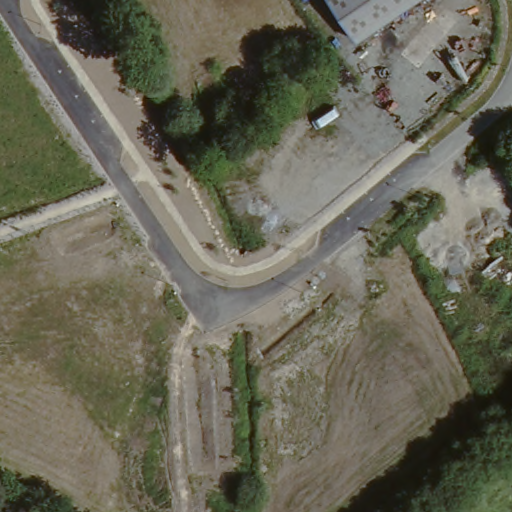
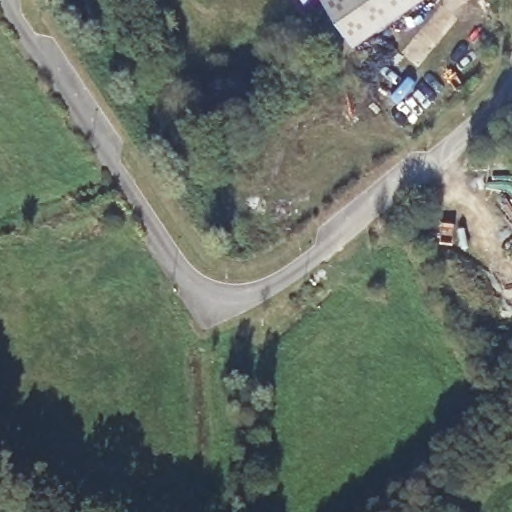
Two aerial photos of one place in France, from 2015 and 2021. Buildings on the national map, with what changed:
unchanged [(355,45),(326,0),(423,0),(355,45)]

